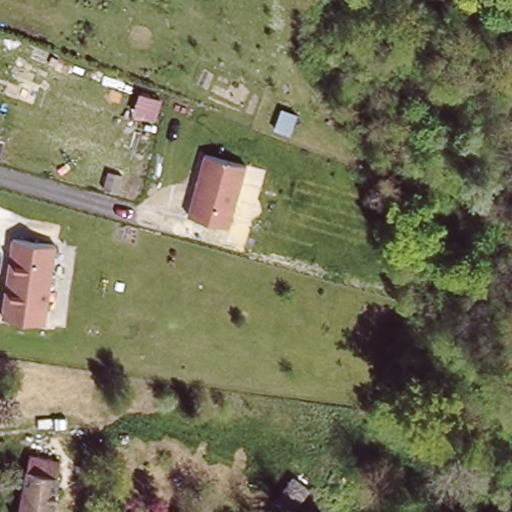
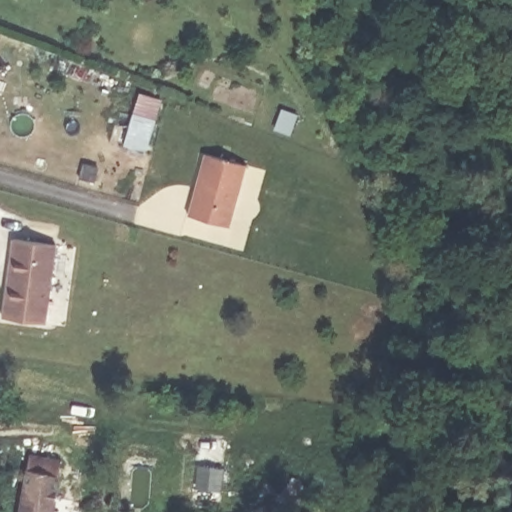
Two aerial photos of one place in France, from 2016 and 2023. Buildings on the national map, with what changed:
unchanged [(247,165),(229,228),(185,215),(203,151),(247,165)]
unchanged [(55,250),(45,319),(2,312),(13,241),(55,250)]
unchanged [(62,460),(53,512),(19,512),(28,455),(62,460)]

